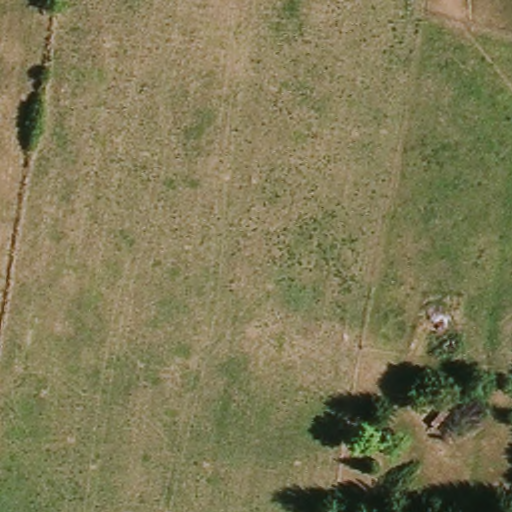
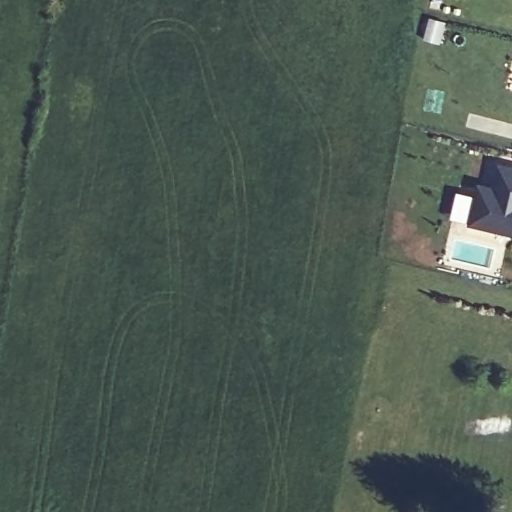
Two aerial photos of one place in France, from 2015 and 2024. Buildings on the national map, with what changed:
new [(512,167),(512,236),(468,226),(479,184),(492,186),(500,164),(512,167)]

